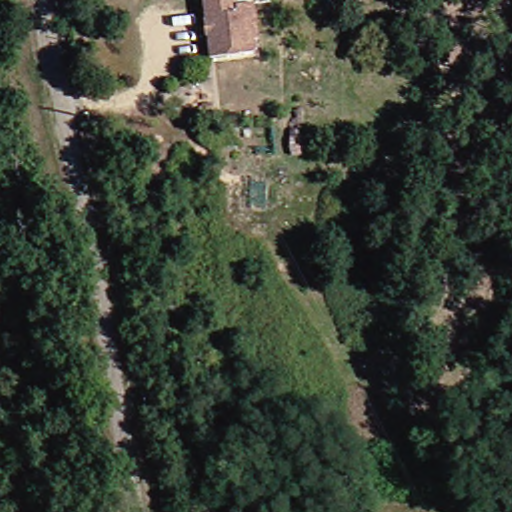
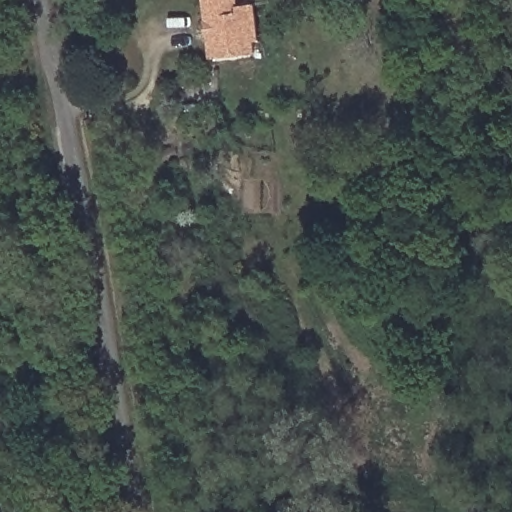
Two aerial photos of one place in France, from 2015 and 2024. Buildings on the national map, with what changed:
unchanged [(190,0),(229,0),(231,6),(245,4),(252,52),(205,59),(200,60),(197,40),(195,28),(190,0)]

